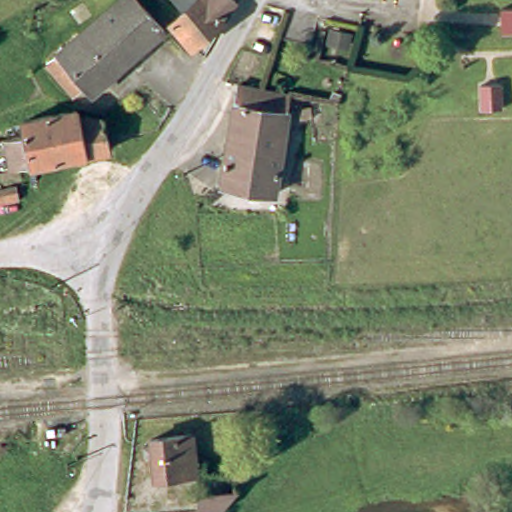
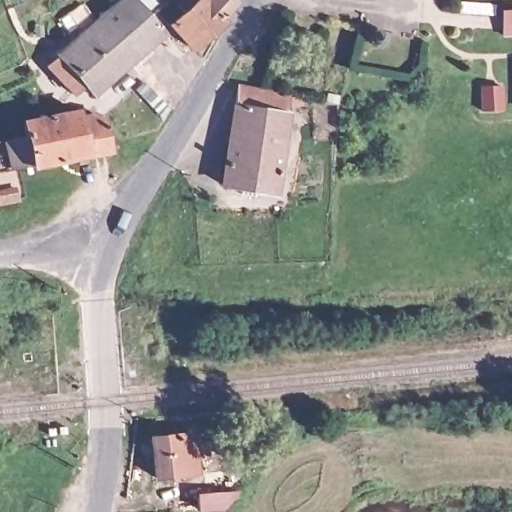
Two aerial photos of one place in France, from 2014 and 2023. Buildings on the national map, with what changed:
unchanged [(53,55),(117,0),(131,0),(159,32),(86,95),(79,86),(68,95),(42,65),(53,55)]
unchanged [(183,45),(165,22),(168,20),(175,14),(179,10),(169,0),(226,0),(230,4),(215,18),(219,21),(208,30),(211,34),(207,42),(201,37),(187,49),(183,45)]
unchanged [(493,16),(512,18),(512,30),(492,29),(493,16)]
unchanged [(238,194),(239,187),(221,185),(238,85),(261,89),(290,95),(272,193),(254,190),(253,196),(238,194)]
unchanged [(498,110),(479,111),(478,86),(498,85),(498,110)]
unchanged [(0,163),(0,136),(9,135),(19,132),(18,126),(29,125),(27,115),(82,104),(83,109),(91,107),(110,112),(115,144),(14,165),(4,166),(0,163)]
unchanged [(15,187),(18,200),(0,205),(0,190),(15,187)]
unchanged [(147,444),(138,445),(137,435),(146,434),(146,427),(186,422),(190,461),(149,466),(147,444)]
unchanged [(196,492),(236,489),(220,507),(198,510),(196,492)]

